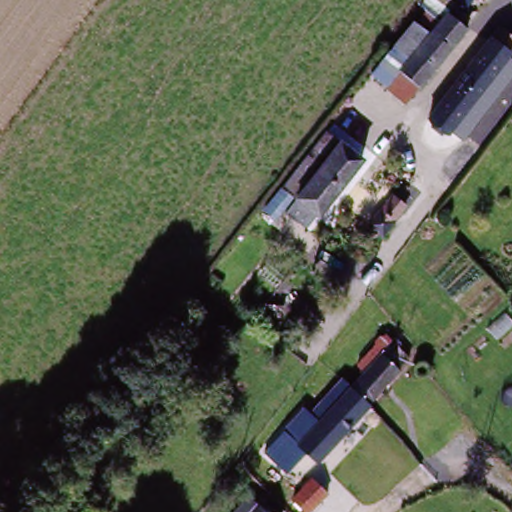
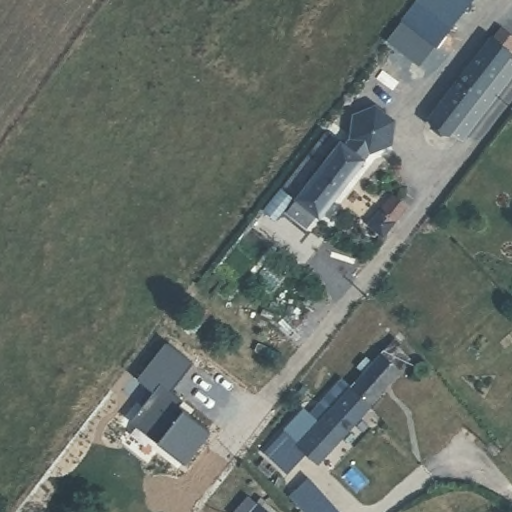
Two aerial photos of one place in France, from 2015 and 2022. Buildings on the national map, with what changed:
unchanged [(395,71),(413,47),(442,10),(462,26),(433,62),(414,86),(395,71)]
unchanged [(447,139),(427,124),(488,44),(508,59),(447,139)]
unchanged [(265,215),(281,192),(323,135),(356,158),(316,217),(308,212),(300,222),(283,210),(273,222),(265,215)]
unchanged [(389,223),(379,237),(365,227),(375,212),(389,223)]
demolished [(512,307),(512,312),(510,309),(512,307)]
new [(136,425),(146,412),(143,410),(155,395),(139,383),(169,345),(195,366),(173,395),(185,404),(181,409),(211,433),(185,467),(170,455),(159,446),(161,443),(136,425)]
unchanged [(294,430),(298,433),(321,411),(324,414),(357,380),(369,390),(392,368),(400,380),(322,457),(310,448),(298,460),(282,443),(294,430)]
unchanged [(307,485),(322,498),(308,512),(301,512),(291,503),(307,485)]
unchanged [(251,498),(265,512),(239,512),(251,498)]
demolished [(389,498),(398,512),(372,512),(389,498)]

